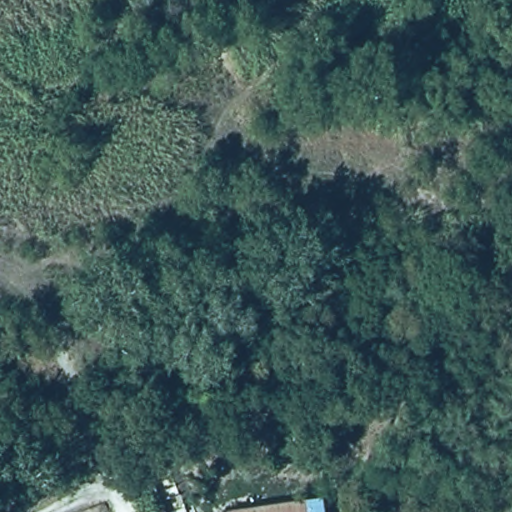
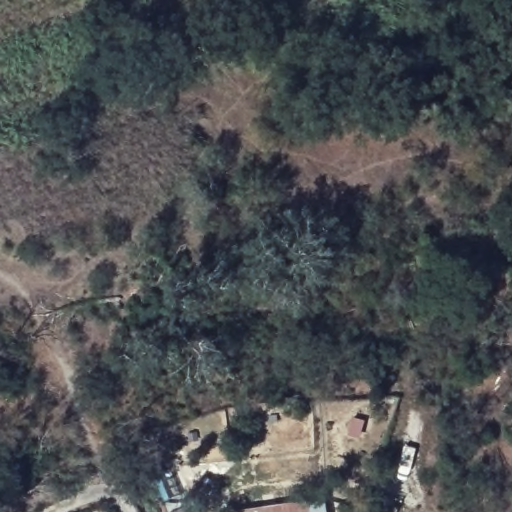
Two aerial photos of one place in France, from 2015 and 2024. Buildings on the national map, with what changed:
unchanged [(330,512),(225,512),(225,508),(326,494),(330,512)]

